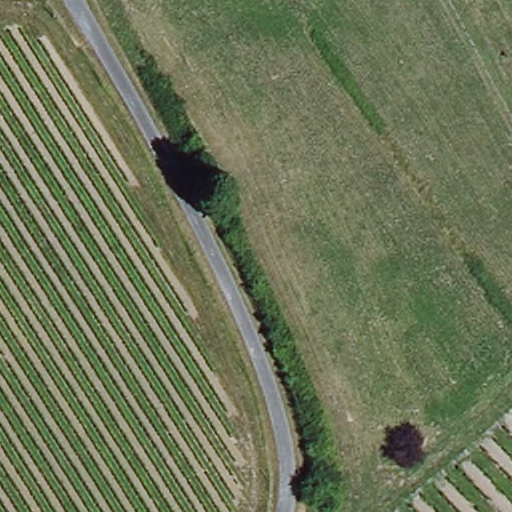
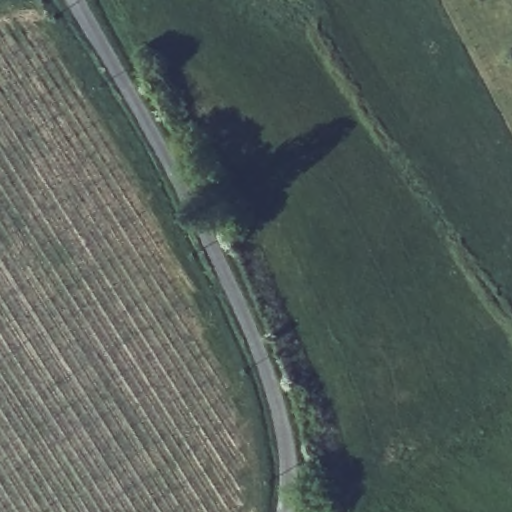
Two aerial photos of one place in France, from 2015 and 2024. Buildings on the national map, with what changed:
[]

